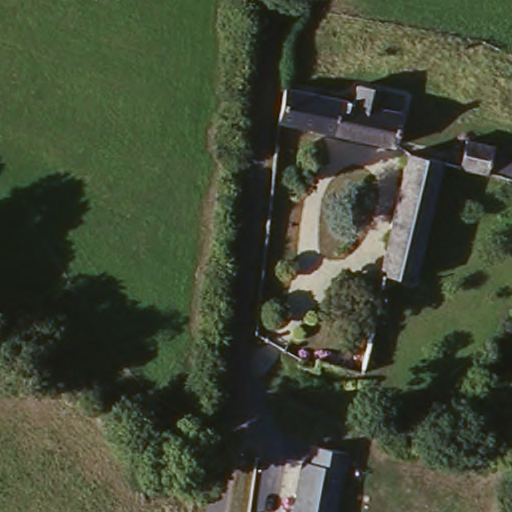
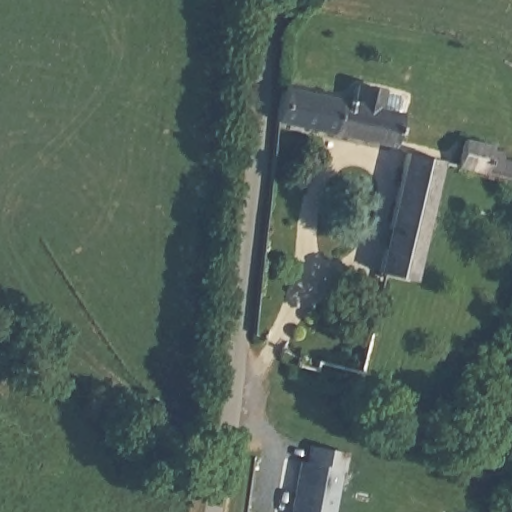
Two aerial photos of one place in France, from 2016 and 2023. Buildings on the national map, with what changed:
unchanged [(289,86),(353,100),(357,81),(383,86),(381,103),(401,107),(393,142),(276,116),(289,86)]
unchanged [(490,149),(505,152),(503,160),(512,162),(512,179),(458,167),(464,140),(492,145),(490,149)]
unchanged [(440,155),(413,277),(379,269),(407,148),(440,155)]
unchanged [(313,457),(316,440),(351,447),(348,465),(346,465),(337,512),(296,512),(306,456),(313,457)]

